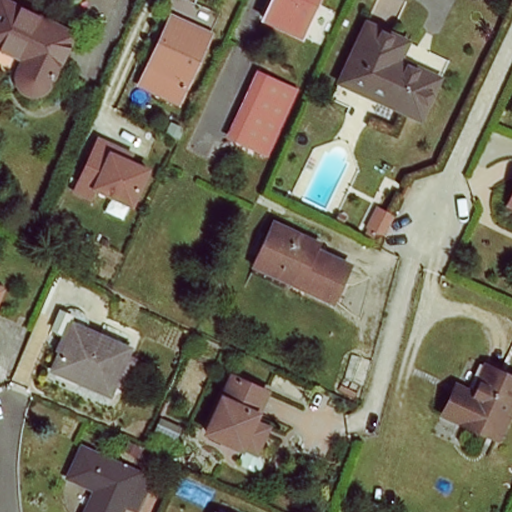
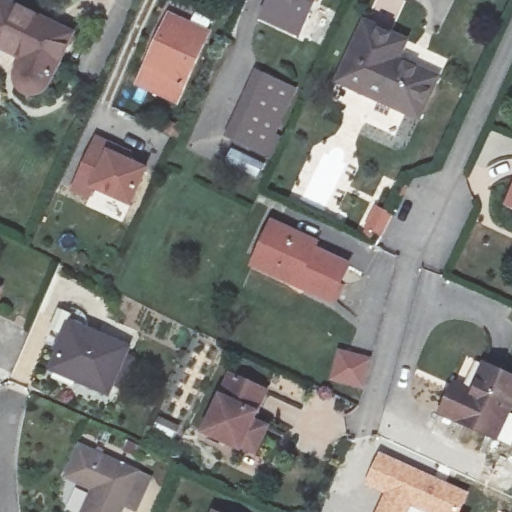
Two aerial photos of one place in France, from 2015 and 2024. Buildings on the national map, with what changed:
unchanged [(45,31),(68,42),(47,86),(41,90),(35,92),(30,92),(24,90),(20,89),(18,85),(15,82),(14,76),(21,60),(0,50),(0,0),(2,0),(50,22),(45,31)]
unchanged [(251,19),(260,0),(317,0),(297,41),(251,19)]
unchanged [(206,32),(176,100),(138,81),(168,14),(206,32)]
unchanged [(405,46),(397,65),(436,83),(417,124),(336,87),(363,27),(405,46)]
unchanged [(296,90),(264,152),(221,132),(255,69),(296,90)]
unchanged [(133,152),(129,159),(151,167),(135,207),(95,192),(92,202),(71,193),(96,136),(133,152)]
unchanged [(507,207),(512,195),(512,210),(507,207)]
unchanged [(387,237),(366,229),(376,205),(397,215),(387,237)]
unchanged [(255,257),(269,224),(294,235),(311,244),(309,249),(345,265),(328,301),(274,278),(250,267),(255,257)]
unchanged [(121,348),(103,394),(48,370),(70,325),(121,348)]
unchanged [(478,434),(434,413),(443,394),(447,385),(465,394),(478,367),(512,383),(512,388),(497,422),(489,439),(478,434)]
unchanged [(258,460),(243,453),(203,435),(231,373),(271,390),(258,418),(273,425),(258,460)]
unchanged [(87,493),(59,480),(73,450),(128,475),(135,478),(120,512),(79,512),(87,493)]
new [(378,451),(470,491),(461,512),(375,512),(383,493),(363,485),(378,451)]

